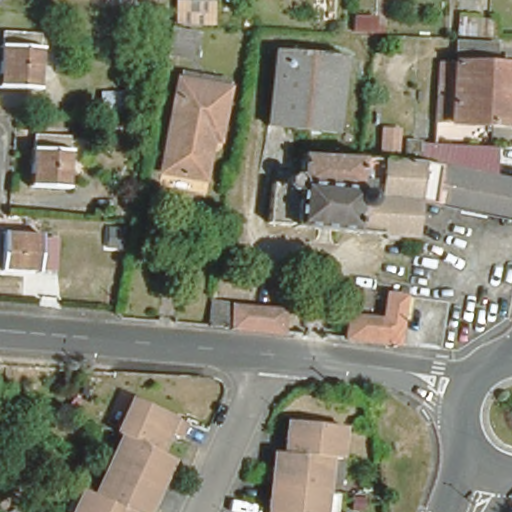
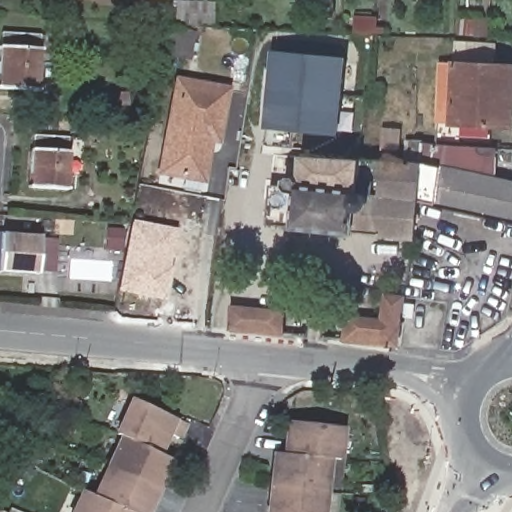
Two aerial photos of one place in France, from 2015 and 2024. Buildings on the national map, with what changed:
unchanged [(192,33),(188,59),(162,54),(167,30),(192,33)]
unchanged [(50,42),(46,88),(29,86),(28,96),(0,93),(0,38),(50,42)]
unchanged [(435,65),(449,66),(451,45),(489,49),(486,69),(512,70),(512,124),(433,119),(435,65)]
unchanged [(349,60),(337,135),(268,124),(278,49),(349,60)]
unchanged [(226,90),(213,144),(206,141),(197,182),(154,173),(177,80),(226,90)]
unchanged [(137,113),(114,114),(107,114),(106,88),(135,86),(137,113)]
unchanged [(32,134),(69,136),(68,154),(79,154),(78,171),(67,170),(66,188),(28,185),(32,134)]
unchanged [(412,143),(433,145),(432,151),(499,145),(500,159),(500,176),(512,177),(512,216),(446,208),(422,204),(417,238),(359,230),(358,237),(308,230),(308,225),(273,221),(277,184),(284,185),(285,175),(295,176),(297,161),(310,163),(311,152),(379,159),(392,160),(410,163),(412,143)]
new [(171,265),(174,267),(167,300),(118,292),(133,220),(177,229),(178,229),(171,265)]
unchanged [(120,232),(117,244),(104,242),(106,230),(120,232)]
unchanged [(41,235),(38,274),(0,271),(0,232),(41,235)]
new [(41,238),(59,239),(55,273),(38,270),(41,238)]
unchanged [(350,335),(352,313),(386,317),(388,294),(407,297),(403,340),(350,335)]
unchanged [(288,312),(286,334),(232,329),(236,305),(288,312)]
unchanged [(168,457),(141,512),(129,512),(128,512),(67,512),(80,487),(90,493),(119,436),(121,433),(115,429),(132,396),(145,403),(183,422),(183,423),(176,437),(165,431),(157,448),(155,451),(168,457)]
unchanged [(274,446),(285,447),(287,417),(342,422),(339,453),(329,452),(323,512),(268,512),(274,446)]

